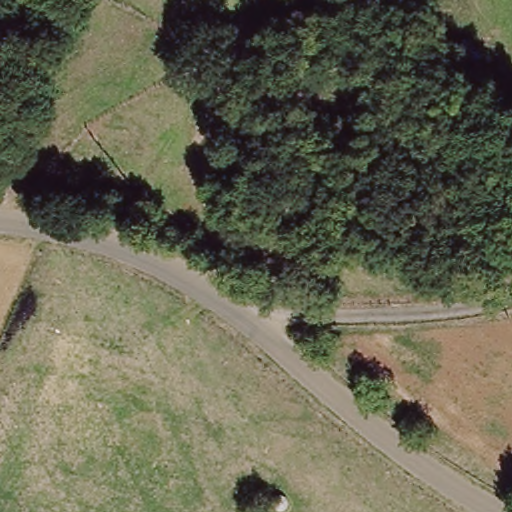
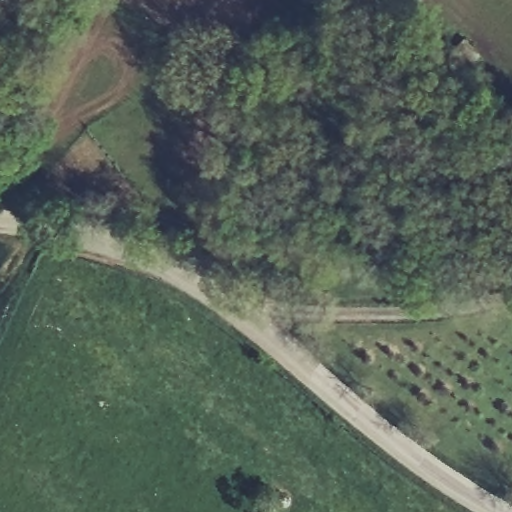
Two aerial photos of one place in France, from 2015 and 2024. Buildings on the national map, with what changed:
unchanged [(271,490),(275,485),(281,483),(287,483),(292,487),(294,492),(294,499),(290,504),(285,506),(278,506),(273,502),(271,497),(271,490)]

